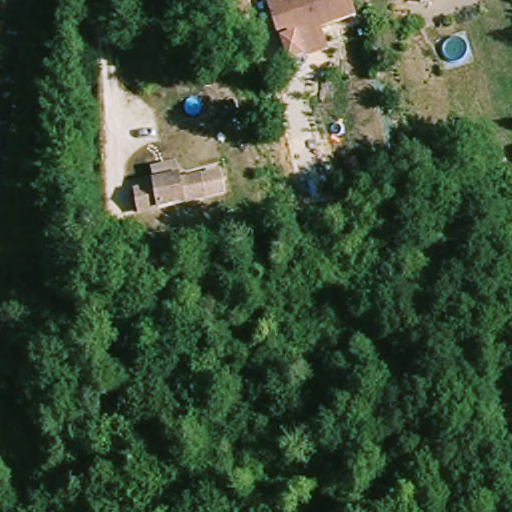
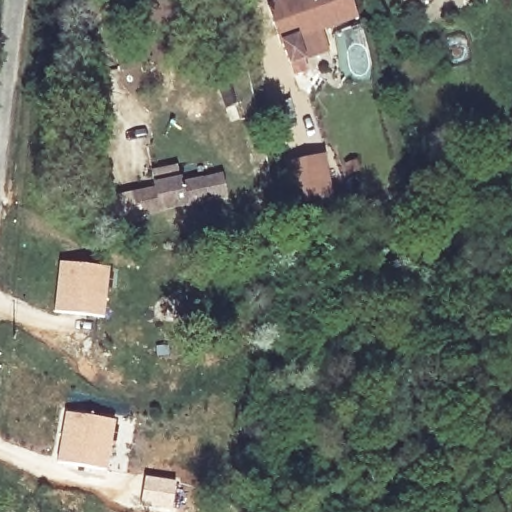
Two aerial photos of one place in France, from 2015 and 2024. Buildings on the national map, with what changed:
unchanged [(265,8),(288,0),(347,0),(354,22),(292,41),(278,46),(274,36),(265,8)]
unchanged [(417,0),(445,0),(419,8),(417,0)]
new [(339,151),(346,191),(289,202),(281,161),(339,151)]
unchanged [(221,187),(223,209),(143,219),(139,197),(158,197),(158,190),(156,177),(183,174),(183,187),(183,191),(221,187)]
new [(61,263),(110,268),(105,317),(56,312),(61,263)]
new [(68,412),(117,420),(109,468),(61,460),(68,412)]

